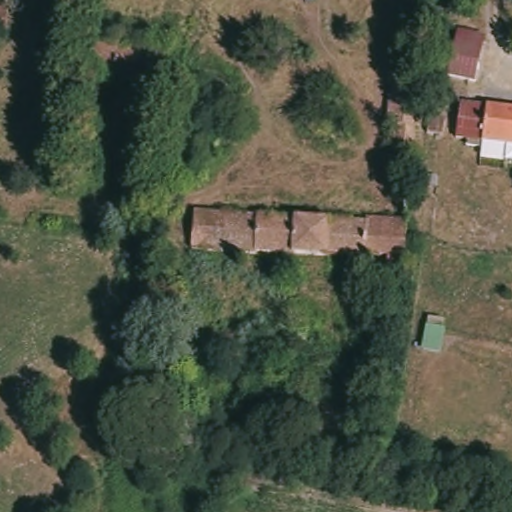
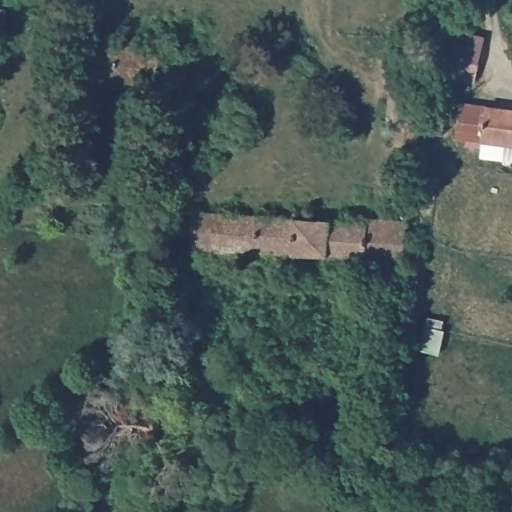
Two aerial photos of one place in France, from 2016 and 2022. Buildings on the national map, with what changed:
unchanged [(54,10),(21,10),(21,0),(54,0),(54,10)]
unchanged [(484,39),(477,80),(445,75),(447,60),(454,61),(459,35),(484,39)]
unchanged [(157,49),(155,62),(164,64),(162,77),(152,76),(150,87),(81,74),(88,36),(157,49)]
unchanged [(426,89),(418,155),(387,152),(392,86),(426,89)]
unchanged [(512,143),(507,142),(505,158),(483,155),(484,146),(465,144),(466,137),(455,136),(459,105),(512,112),(512,143)]
unchanged [(195,245),(199,207),(266,212),(303,216),(297,254),(195,245)]
unchanged [(408,224),(403,264),(297,254),(303,216),(408,224)]

